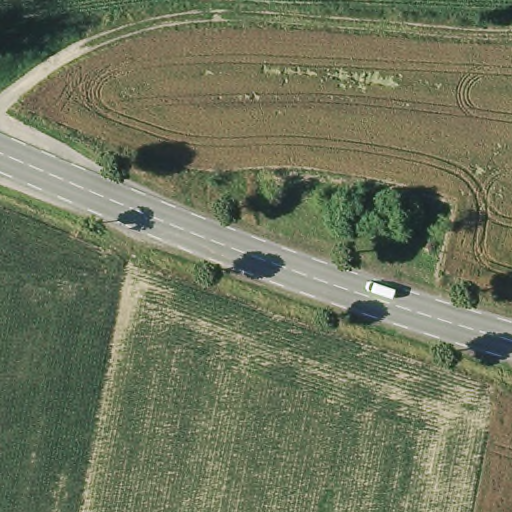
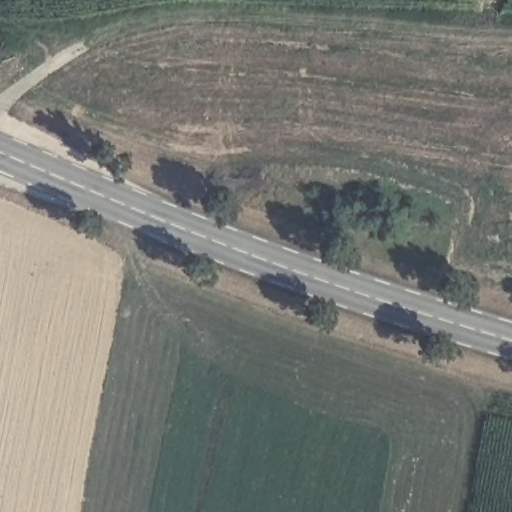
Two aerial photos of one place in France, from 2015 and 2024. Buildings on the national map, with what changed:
[]

